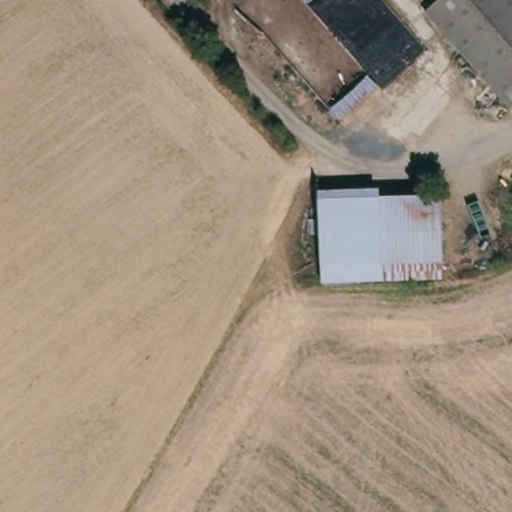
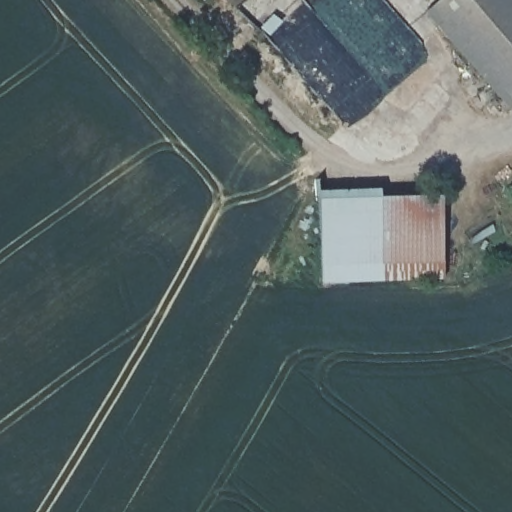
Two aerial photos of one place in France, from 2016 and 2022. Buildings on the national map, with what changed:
unchanged [(425,12),(439,0),(512,0),(512,106),(510,109),(425,12)]
unchanged [(317,199),(437,194),(442,258),(443,276),(322,282),(317,199)]

